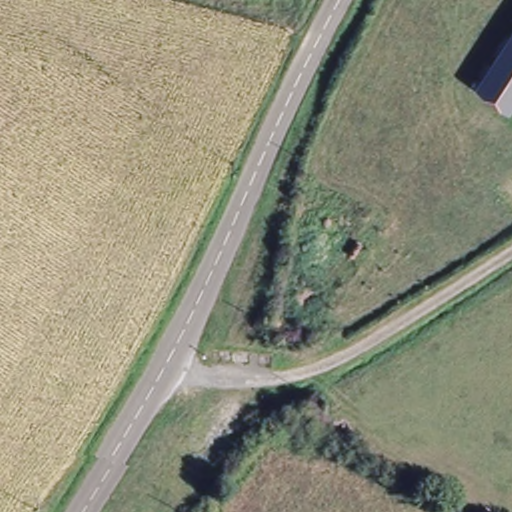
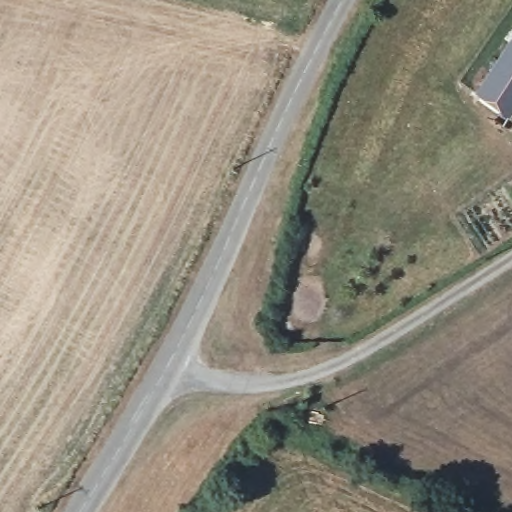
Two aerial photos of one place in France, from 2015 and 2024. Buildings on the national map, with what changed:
unchanged [(512,104),(500,121),(464,96),(512,26),(512,105),(512,104)]

